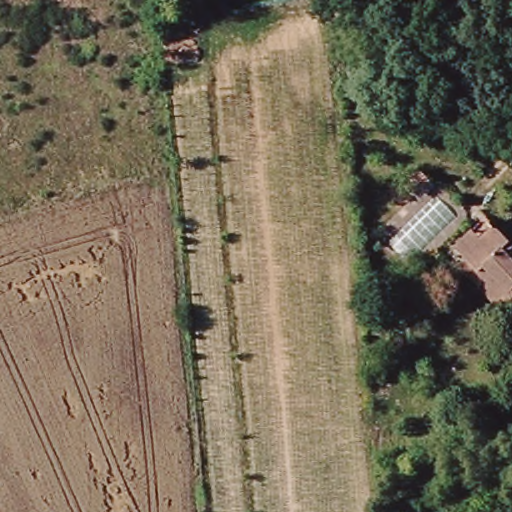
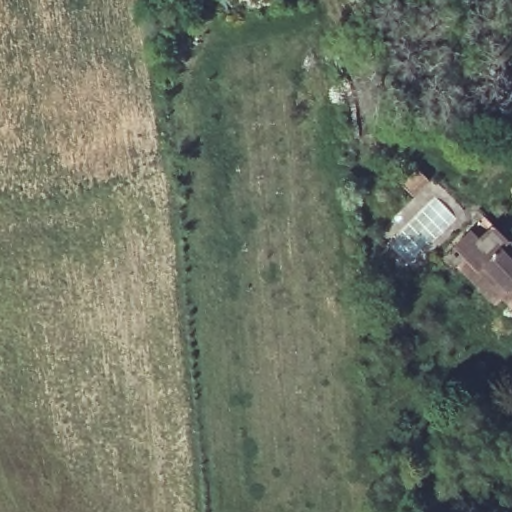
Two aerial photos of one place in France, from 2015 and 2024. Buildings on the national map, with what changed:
unchanged [(466,268),(457,258),(478,240),(487,250),(488,249),(501,237),(512,251),(512,321),(505,312),(496,321),(490,315),(461,281),(471,273),(466,268)]

